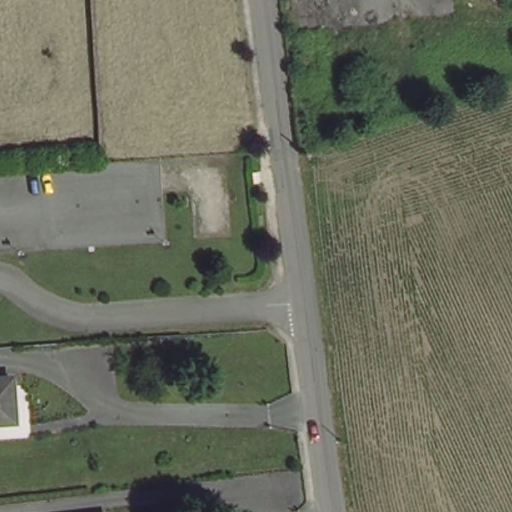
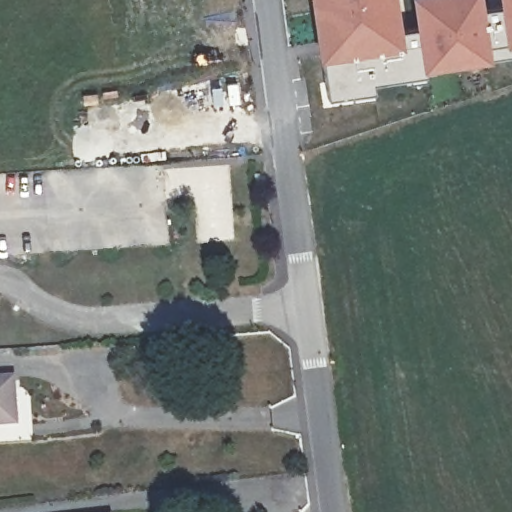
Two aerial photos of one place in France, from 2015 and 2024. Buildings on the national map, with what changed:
new [(424,75),(371,82),(372,91),(325,98),(310,0),(392,0),(396,30),(420,26),(415,0),(477,0),(479,7),(497,5),(496,0),(512,0),(512,54),(422,66),(424,75)]
unchanged [(23,427),(0,428),(0,384),(19,383),(23,427)]

